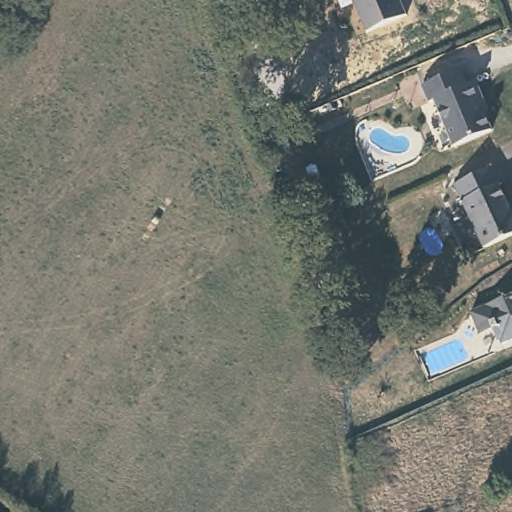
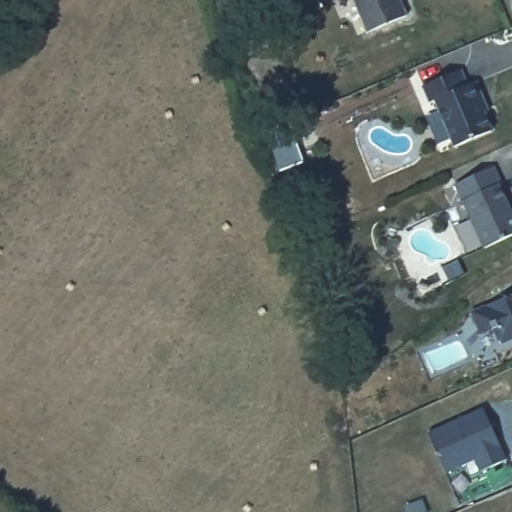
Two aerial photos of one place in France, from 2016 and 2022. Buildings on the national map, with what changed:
unchanged [(407,20),(368,37),(352,0),(399,0),(407,20)]
unchanged [(464,69),(471,85),(479,81),(489,102),(486,104),(497,130),(459,146),(439,100),(434,102),(427,85),(464,69)]
unchanged [(498,170),(506,187),(504,189),(512,206),(512,241),(489,252),(459,189),(498,170)]
unchanged [(498,345),(491,329),(479,334),(469,312),(506,297),(512,290),(512,340),(498,345)]
new [(487,405),(509,459),(481,471),(478,461),(448,471),(432,430),(487,405)]

